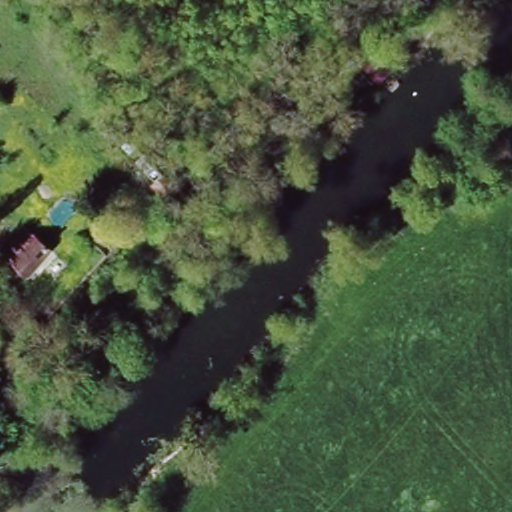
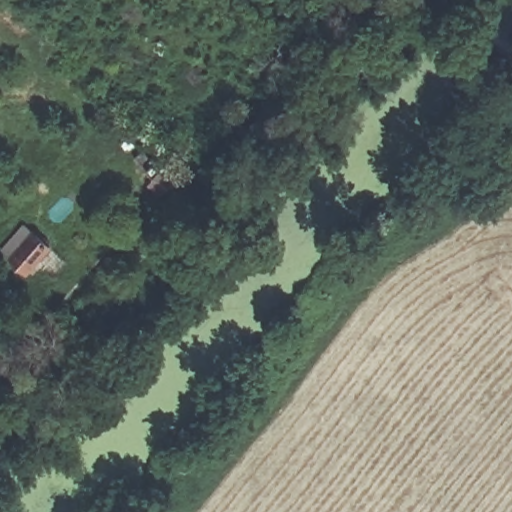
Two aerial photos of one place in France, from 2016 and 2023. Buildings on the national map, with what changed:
unchanged [(283,109),(276,101),(283,94),(291,102),(283,109)]
unchanged [(157,194),(145,182),(149,178),(142,169),(149,163),(168,183),(157,194)]
unchanged [(50,250),(29,274),(4,257),(27,229),(50,250)]

